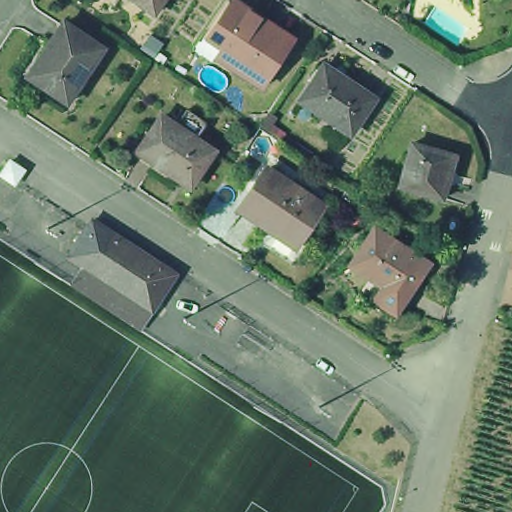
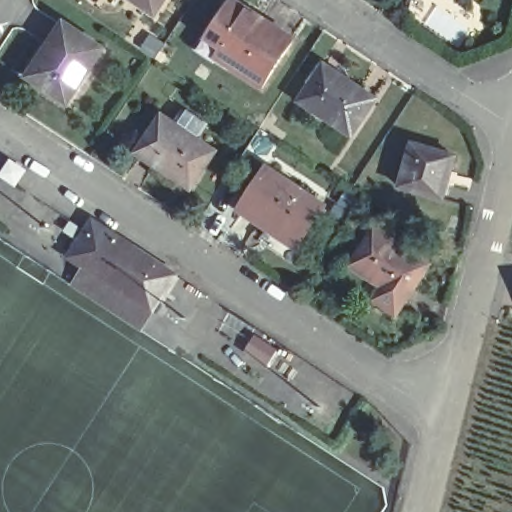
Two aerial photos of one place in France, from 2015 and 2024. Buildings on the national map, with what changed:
unchanged [(135,0),(162,0),(155,13),(135,0)]
unchanged [(205,31),(226,0),(236,0),(255,13),(257,10),(291,34),(259,80),(215,50),(221,41),(205,31)]
unchanged [(58,24),(97,50),(60,105),(27,83),(21,78),(41,48),(58,24)]
unchanged [(367,103),(345,137),(293,104),(316,69),(367,103)]
unchanged [(207,153),(184,187),(133,153),(157,118),(207,153)]
unchanged [(442,198),(398,188),(407,145),(452,155),(442,198)]
unchanged [(11,163),(24,172),(14,185),(1,177),(11,163)]
unchanged [(260,170),(316,207),(290,247),(235,210),(260,170)]
unchanged [(84,267),(68,257),(91,222),(107,232),(174,276),(150,311),(139,327),(72,284),(84,267)]
unchanged [(374,296),(359,286),(369,272),(352,260),(374,227),(426,262),(404,295),(394,309),(374,296)]

